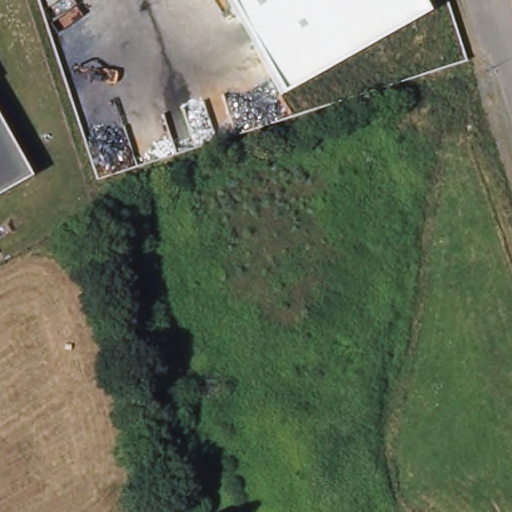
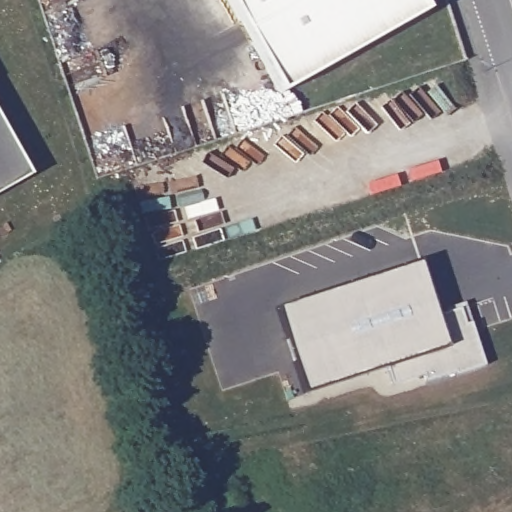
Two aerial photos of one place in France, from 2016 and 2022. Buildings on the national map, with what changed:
unchanged [(422,0),(429,12),(281,95),(227,0),(422,0)]
unchanged [(31,175),(0,193),(0,120),(31,175)]
new [(279,308),(421,262),(437,315),(461,310),(465,325),(471,323),(485,365),(457,375),(456,371),(427,381),(425,375),(393,385),(387,366),(306,393),(279,308)]

